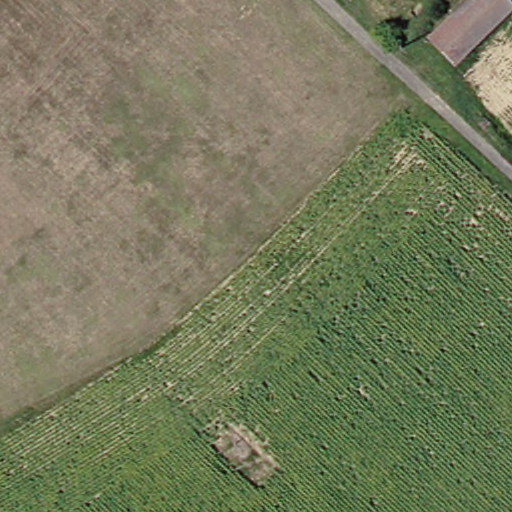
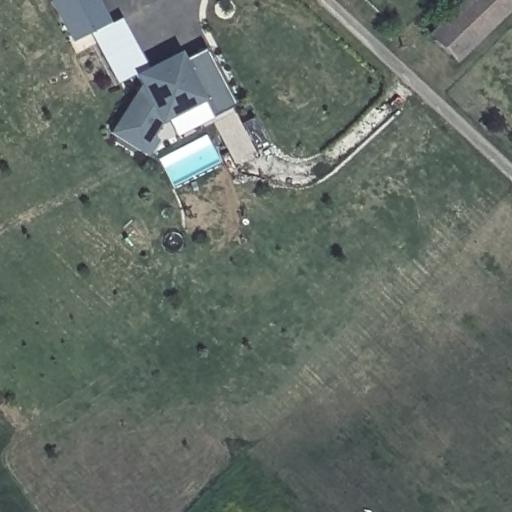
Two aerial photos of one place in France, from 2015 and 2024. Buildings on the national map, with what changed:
new [(98,0),(109,22),(88,33),(70,43),(50,0),(98,0)]
unchanged [(433,33),(466,0),(512,0),(512,9),(463,59),(433,33)]
new [(88,33),(109,22),(120,18),(144,67),(140,69),(141,71),(116,83),(88,33)]
new [(140,69),(157,60),(180,47),(183,54),(187,62),(210,50),(237,99),(215,112),(205,94),(161,118),(154,130),(161,134),(150,151),(114,128),(145,79),(140,69)]

